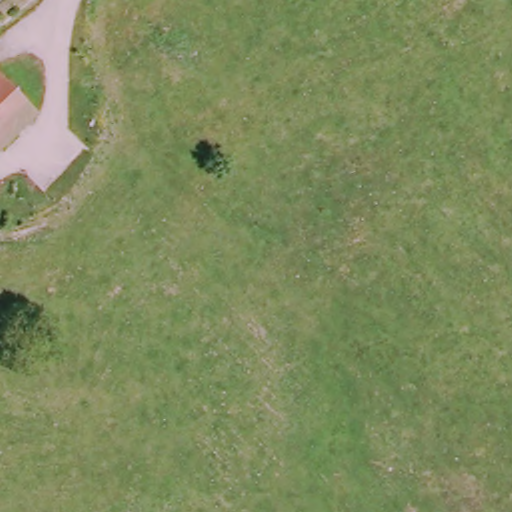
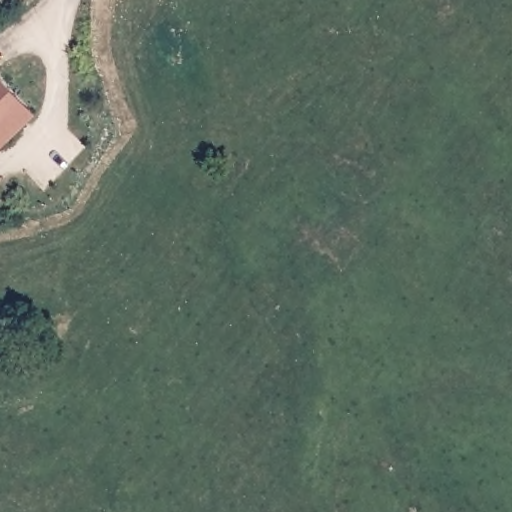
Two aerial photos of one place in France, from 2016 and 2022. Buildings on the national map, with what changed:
unchanged [(0,154),(0,76),(39,118),(0,154)]

